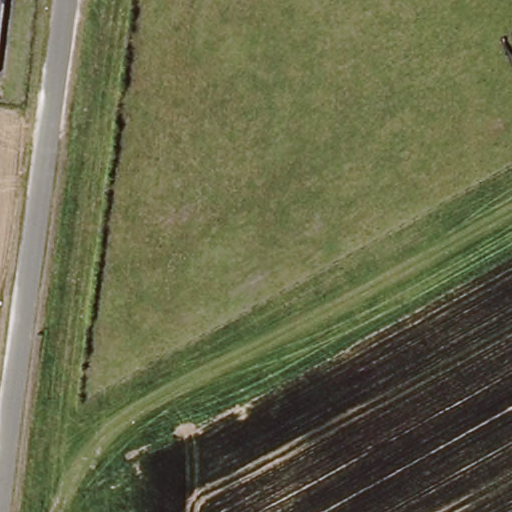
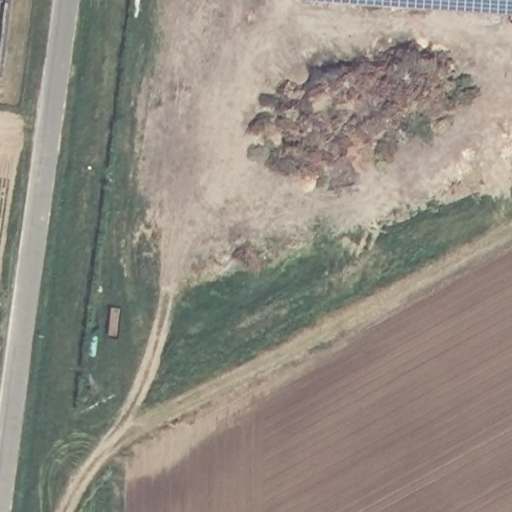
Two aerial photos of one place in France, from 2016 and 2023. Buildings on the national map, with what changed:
new [(512,12),(339,0),(512,0),(512,12)]

